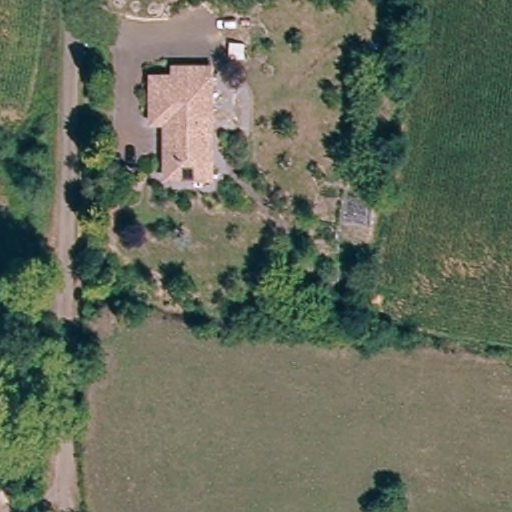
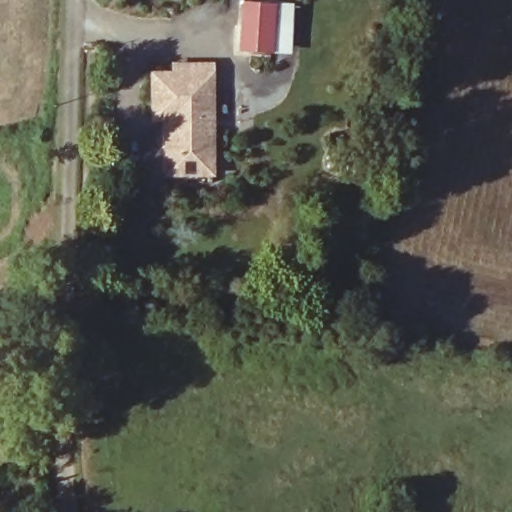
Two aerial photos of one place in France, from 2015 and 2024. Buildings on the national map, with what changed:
new [(273,55),(239,54),(241,3),(276,6),(273,55)]
unchanged [(176,146),(179,113),(164,113),(165,70),(182,70),(184,61),(224,60),(222,173),(190,172),(174,171),(176,146)]

